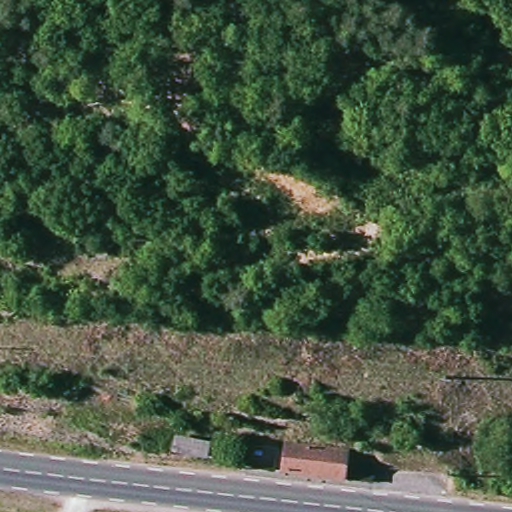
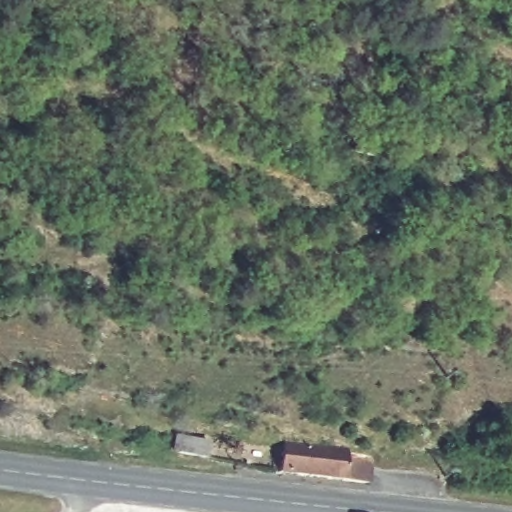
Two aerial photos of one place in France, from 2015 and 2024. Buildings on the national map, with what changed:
unchanged [(289,446),(377,455),(374,485),(285,475),(289,446)]

